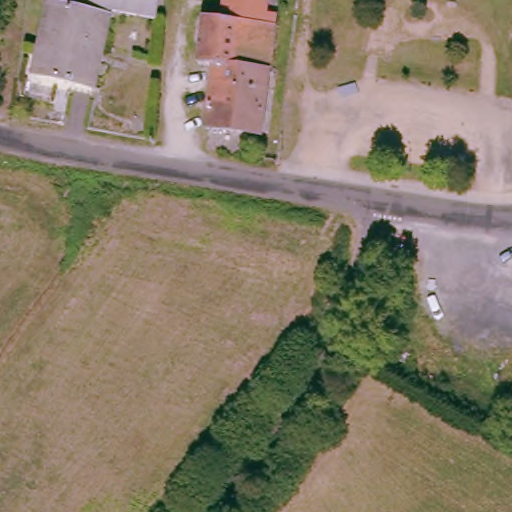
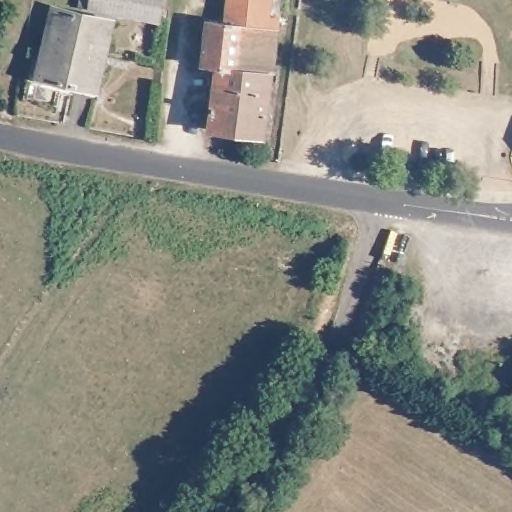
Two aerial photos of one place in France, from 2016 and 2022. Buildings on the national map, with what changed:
unchanged [(159,19),(87,5),(87,0),(163,0),(159,19)]
unchanged [(262,140),(206,132),(215,72),(234,75),(236,29),(221,27),(225,0),(282,0),(262,140)]
unchanged [(98,87),(74,82),(71,93),(35,84),(53,6),(113,20),(98,87)]
unchanged [(201,70),(204,24),(221,27),(236,29),(234,75),(215,72),(201,70)]
unchanged [(512,393),(512,421),(500,414),(512,393)]

